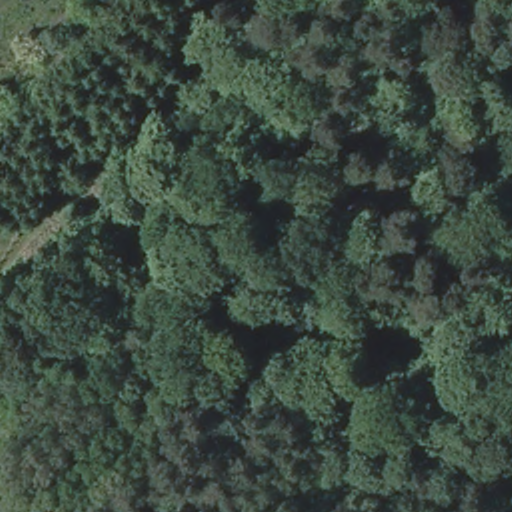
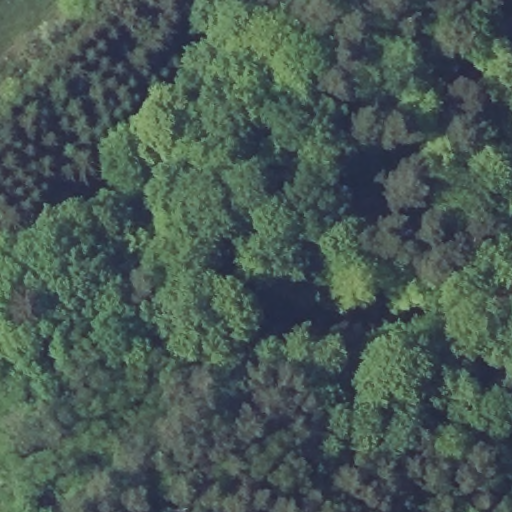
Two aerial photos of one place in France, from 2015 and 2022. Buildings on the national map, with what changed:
[]

